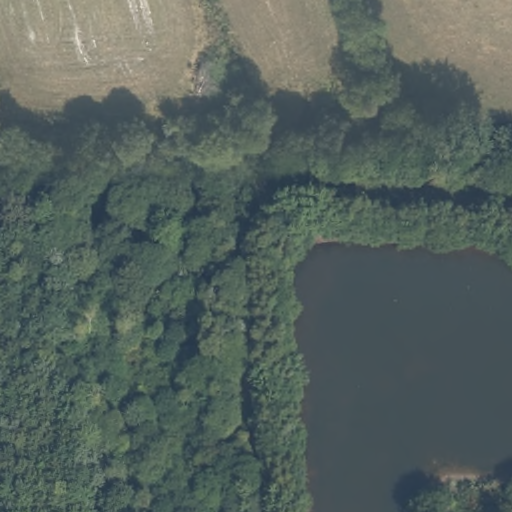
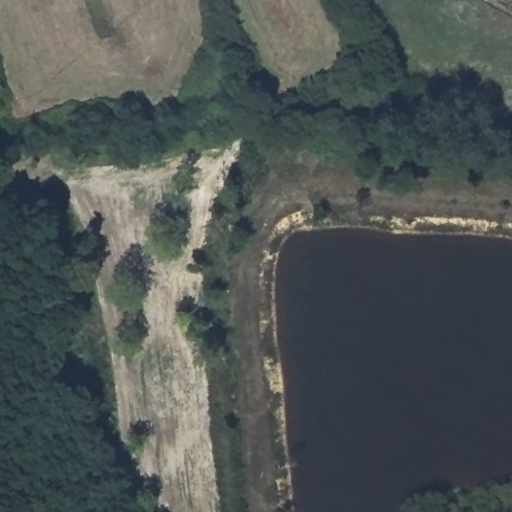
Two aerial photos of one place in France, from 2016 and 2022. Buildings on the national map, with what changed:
[]

